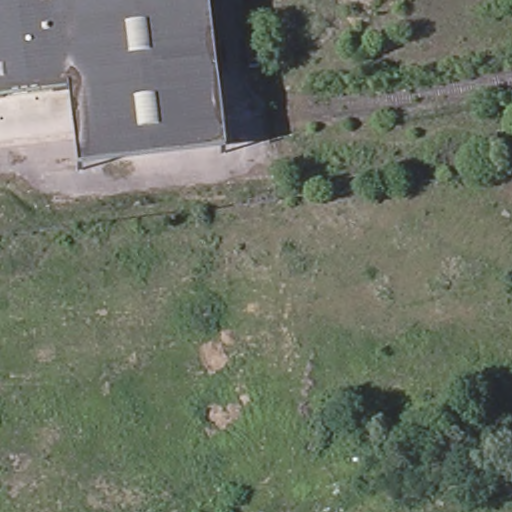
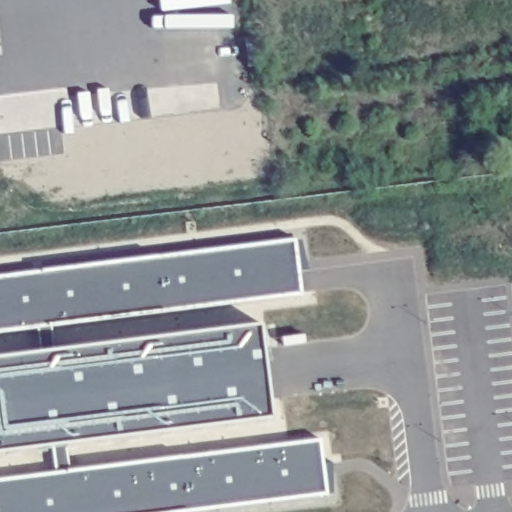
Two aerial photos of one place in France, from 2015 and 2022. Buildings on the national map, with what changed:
demolished [(0,0),(212,0),(221,76),(71,94),(0,103),(0,0)]
unchanged [(264,60),(253,61),(250,34),(261,32),(264,60)]
new [(302,296),(53,327),(58,351),(263,326),(275,417),(68,444),(72,470),(320,441),(328,493),(180,512),(0,512),(0,480),(56,473),(53,446),(0,453),(0,361),(46,354),(40,328),(0,333),(0,278),(296,241),(302,296)]

